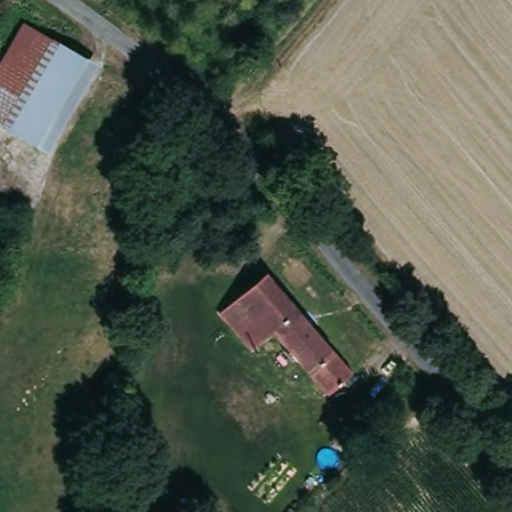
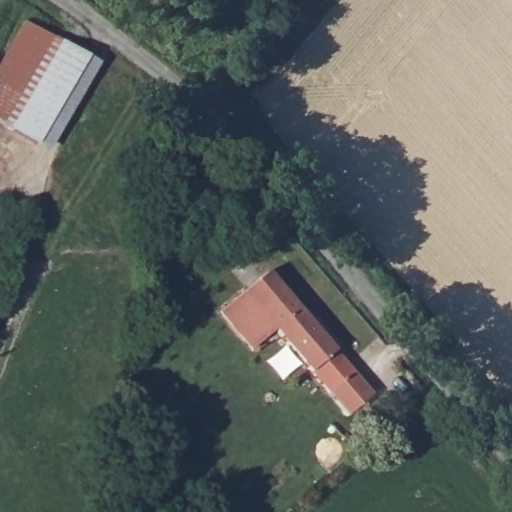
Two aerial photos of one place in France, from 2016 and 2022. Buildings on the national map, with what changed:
unchanged [(63,40),(11,130),(0,124),(0,58),(24,18),(63,40)]
unchanged [(63,40),(100,60),(48,151),(11,130),(63,40)]
unchanged [(262,268),(357,376),(331,397),(269,328),(248,348),(214,311),(262,268)]

